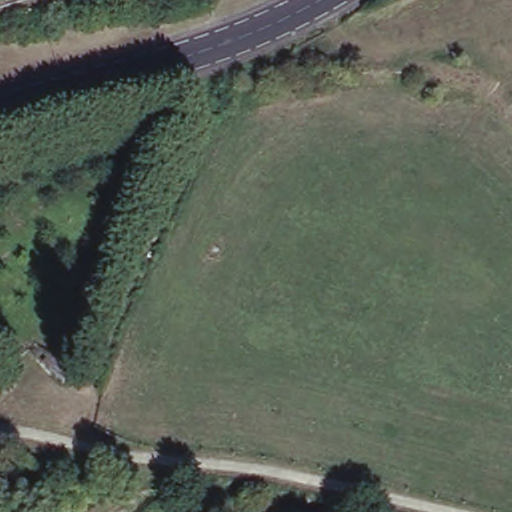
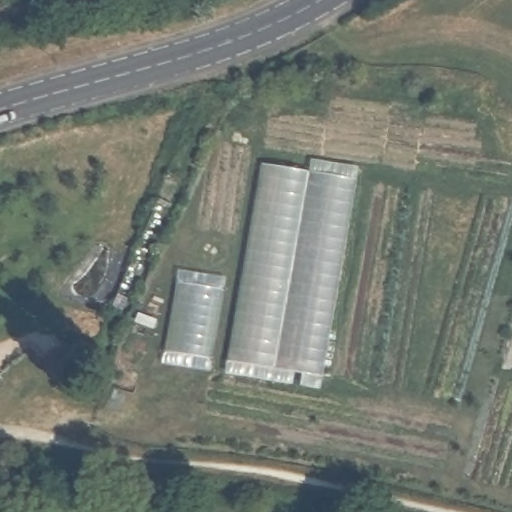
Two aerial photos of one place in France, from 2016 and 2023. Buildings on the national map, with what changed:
new [(358,168),(321,389),(225,375),(265,152),(358,168)]
unchanged [(85,353),(68,391),(55,378),(70,346),(85,353)]

